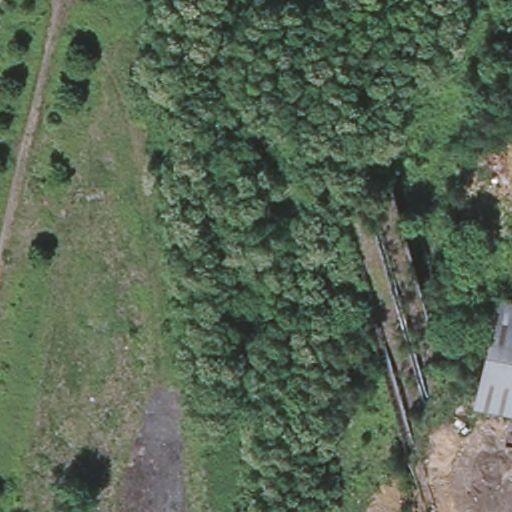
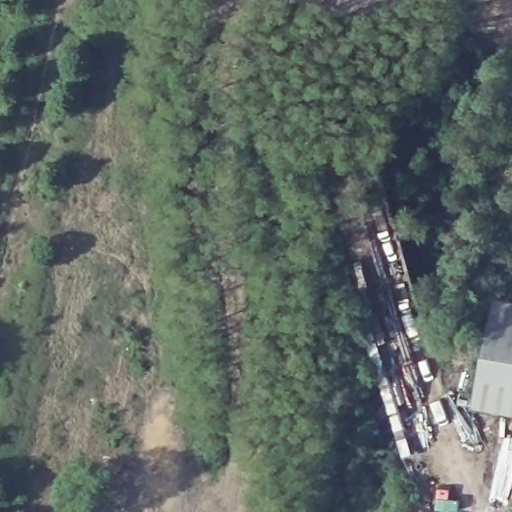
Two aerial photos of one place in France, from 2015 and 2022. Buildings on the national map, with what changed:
unchanged [(492,294),(512,299),(512,413),(469,403),(492,294)]

